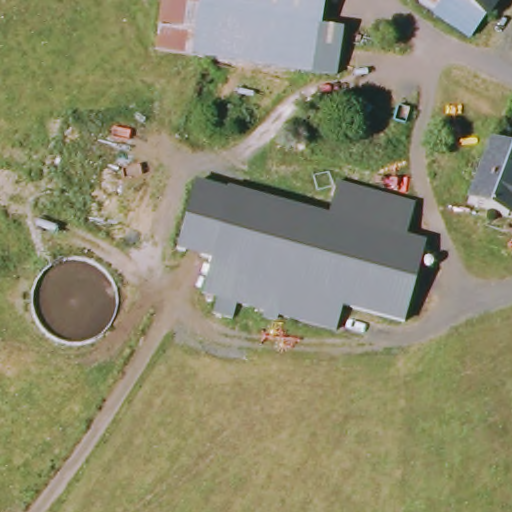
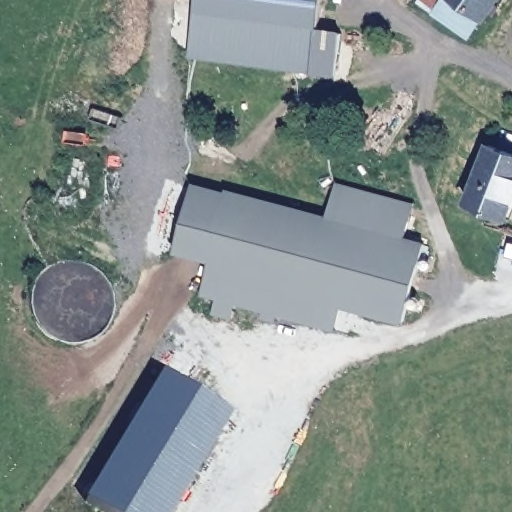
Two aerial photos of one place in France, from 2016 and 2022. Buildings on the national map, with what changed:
unchanged [(206,0),(198,58),(162,54),(170,0),(206,0)]
unchanged [(329,0),(325,30),(316,73),(198,58),(206,0),(329,0)]
unchanged [(506,0),(490,21),(473,45),(420,10),(427,0),(506,0)]
unchanged [(350,35),(341,78),(316,73),(325,30),(350,35)]
unchanged [(476,207),(496,146),(512,152),(512,218),(502,215),(476,207)]
unchanged [(334,331),(280,315),(277,321),(268,319),(270,313),(240,304),(236,320),(216,314),(221,299),(206,294),(207,290),(219,260),(215,258),(202,253),(182,245),(202,185),(241,200),(243,201),(246,194),(256,197),(265,199),(332,218),(411,240),(431,246),(409,325),(347,308),(341,333),(334,331)]
new [(157,370),(224,409),(163,512),(113,512),(85,495),(157,370)]

